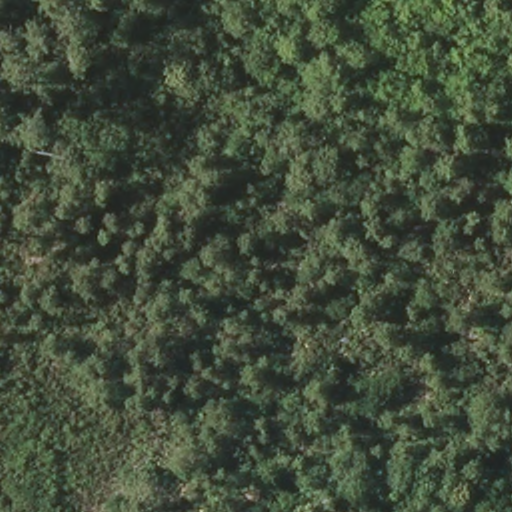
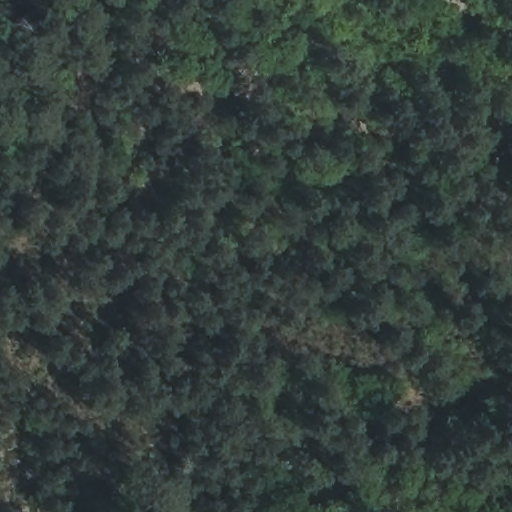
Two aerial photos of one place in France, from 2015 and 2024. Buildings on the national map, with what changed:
[]

